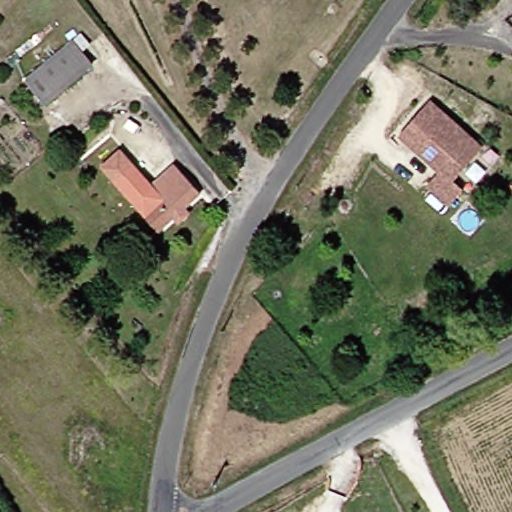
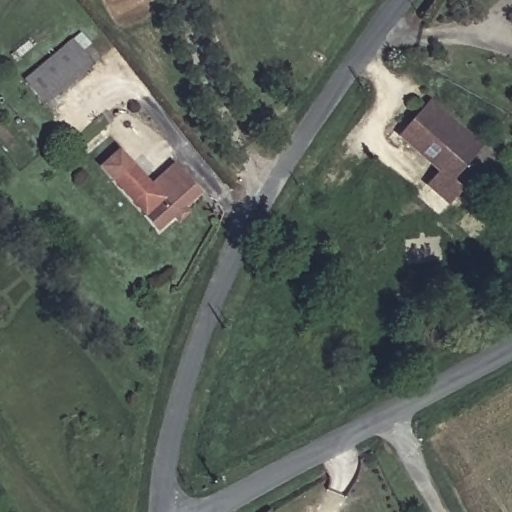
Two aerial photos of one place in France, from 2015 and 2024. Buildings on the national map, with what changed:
unchanged [(69,71),(62,76),(67,85),(42,103),(27,81),(60,60),(69,71)]
unchanged [(479,142),(456,177),(467,184),(457,200),(432,184),(441,169),(395,140),(420,104),(479,142)]
unchanged [(174,171),(198,200),(155,235),(112,183),(100,169),(120,153),(132,168),(150,190),(174,171)]

